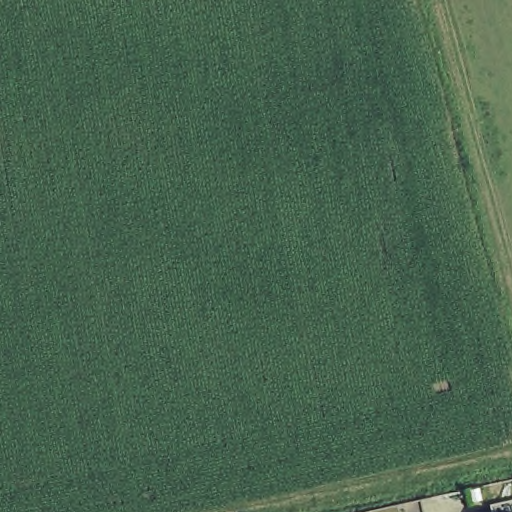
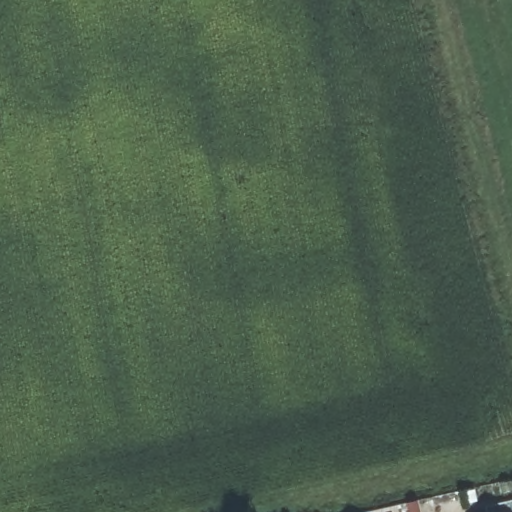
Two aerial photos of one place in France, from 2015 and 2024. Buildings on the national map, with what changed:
unchanged [(512,499),(512,512),(480,512),(479,506),(512,499)]

